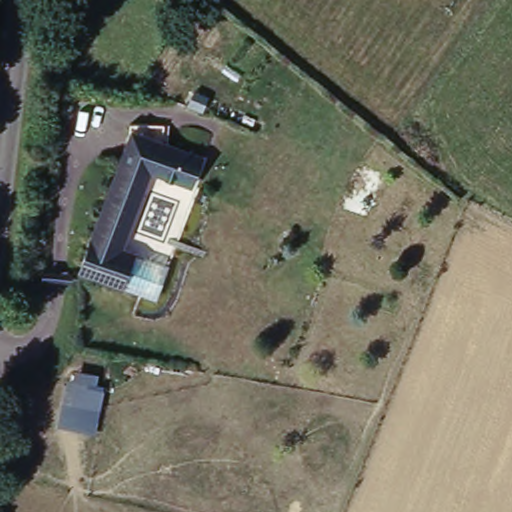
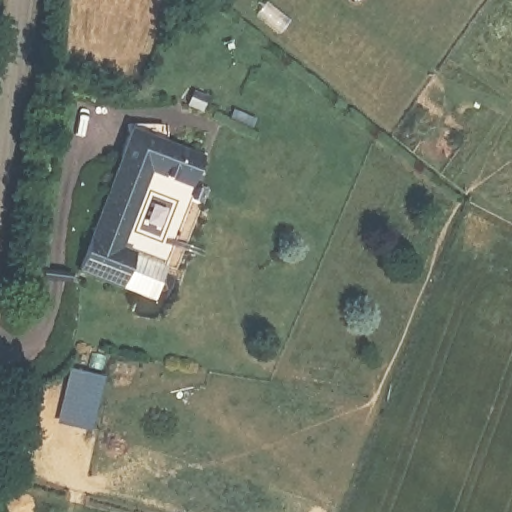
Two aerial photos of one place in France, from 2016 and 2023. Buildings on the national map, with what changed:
unchanged [(125,131),(195,155),(186,184),(144,170),(118,249),(165,265),(154,299),(77,273),(125,131)]
unchanged [(104,378),(90,441),(54,433),(67,369),(104,378)]

